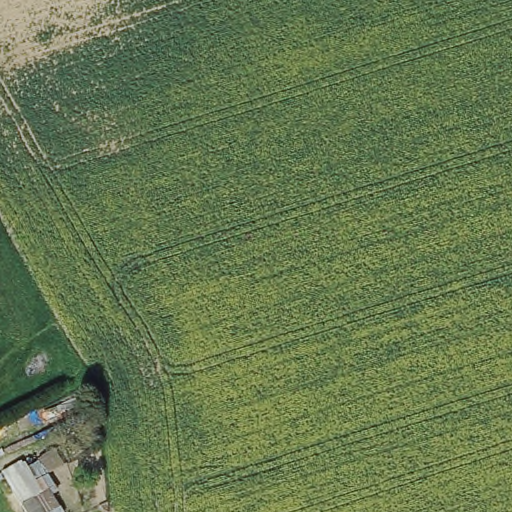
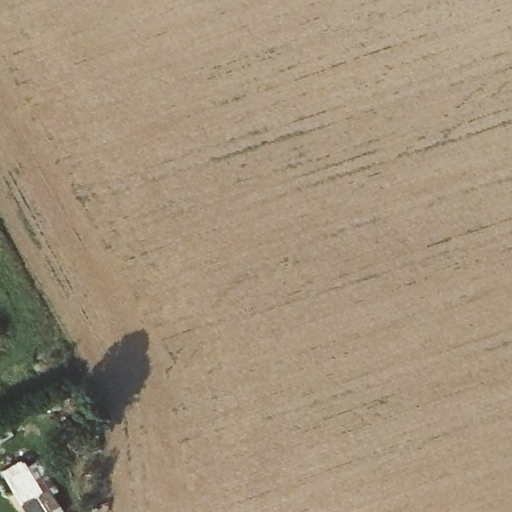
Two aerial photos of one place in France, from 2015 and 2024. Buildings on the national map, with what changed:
unchanged [(0,473),(22,461),(41,494),(50,490),(61,512),(24,512),(0,473)]

